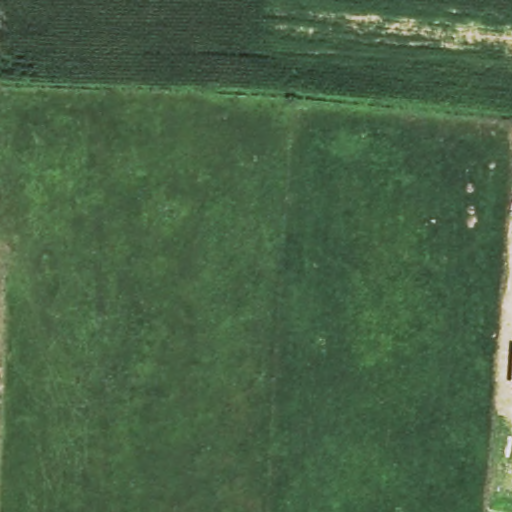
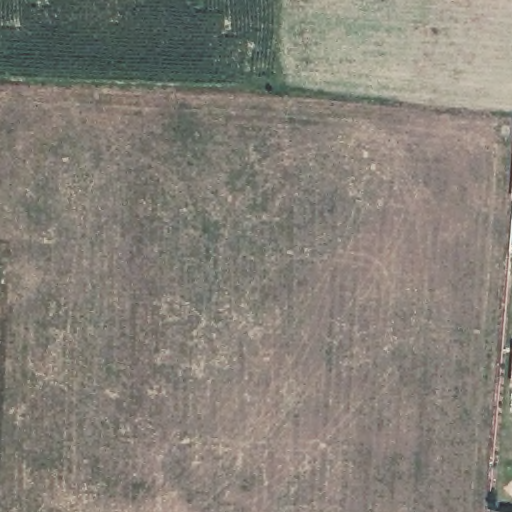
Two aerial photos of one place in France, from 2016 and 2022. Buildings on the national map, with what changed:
unchanged [(510,387),(512,360),(512,388),(510,387)]

